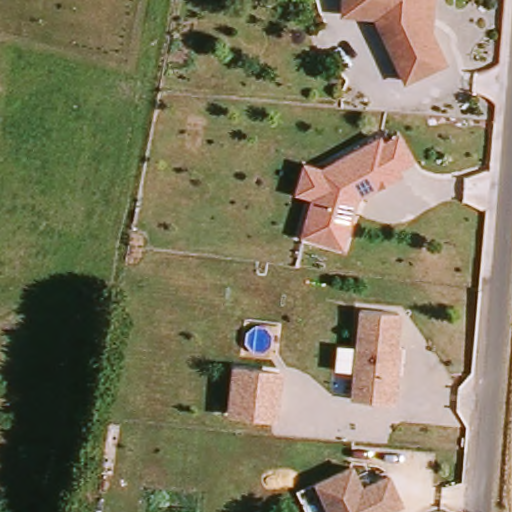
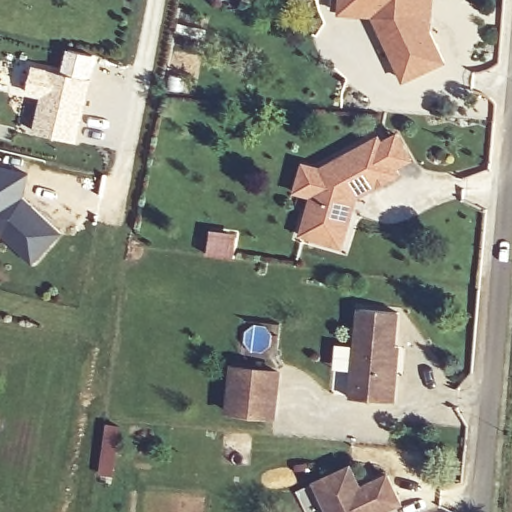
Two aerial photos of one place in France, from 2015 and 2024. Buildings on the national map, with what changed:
unchanged [(370,19),(336,17),(337,0),(422,0),(420,21),(443,62),(405,83),(370,19)]
new [(92,80),(78,142),(34,134),(41,97),(26,94),(32,66),(92,80)]
unchanged [(307,198),(292,195),(301,162),(320,168),(376,135),(381,141),(398,132),(410,161),(396,169),(400,176),(354,201),(340,246),(298,237),(307,198)]
new [(28,174),(23,198),(62,233),(32,265),(2,237),(0,236),(0,167),(28,174)]
unchanged [(360,310),(398,316),(388,377),(390,377),(386,405),(345,398),(360,310)]
unchanged [(282,371),(277,422),(225,416),(231,364),(282,371)]
unchanged [(317,483),(352,470),(362,491),(390,481),(402,509),(395,512),(328,512),(317,483)]

